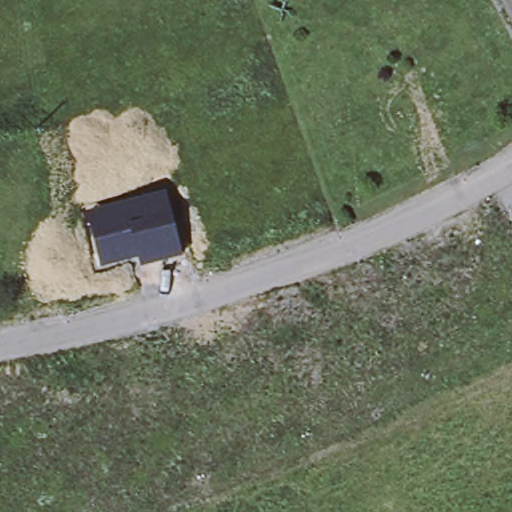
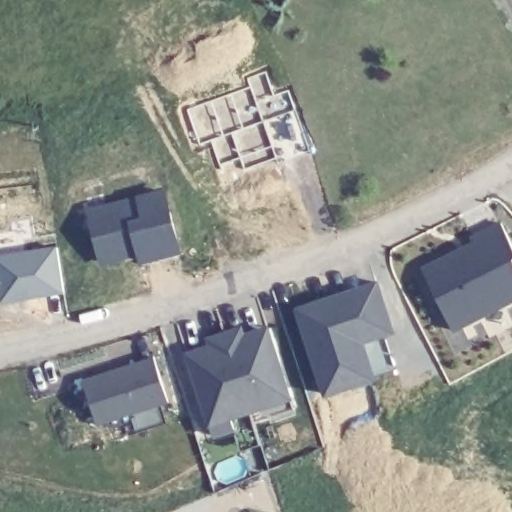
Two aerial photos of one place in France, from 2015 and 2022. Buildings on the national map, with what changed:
unchanged [(137,254),(100,264),(85,209),(169,188),(185,252),(139,263),(137,254)]
new [(449,260),(474,247),(470,238),(500,223),(512,248),(512,299),(502,304),(501,301),(476,313),(478,317),(451,330),(421,268),(447,255),(449,260)]
new [(59,250),(65,293),(0,303),(0,258),(59,250)]
new [(372,377),(324,391),(296,308),(333,296),(348,291),(375,283),(391,330),(383,332),(395,369),(372,377)]
new [(207,337),(240,327),(243,334),(259,329),(267,326),(271,340),(290,398),(208,424),(190,367),(185,352),(193,350),(209,345),(207,337)]
new [(152,355),(167,400),(96,423),(81,378),(152,355)]
new [(290,398),(293,409),(212,435),(208,424),(290,398)]

